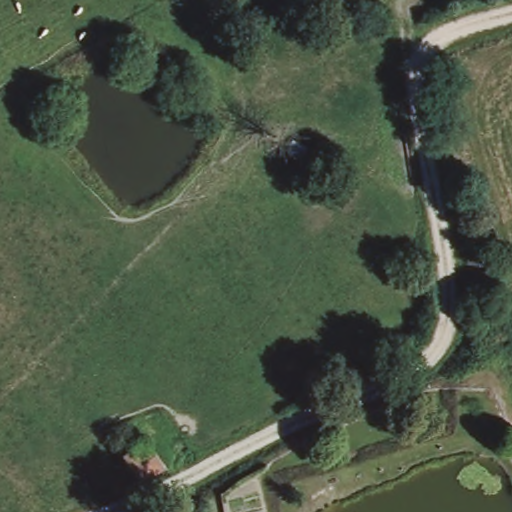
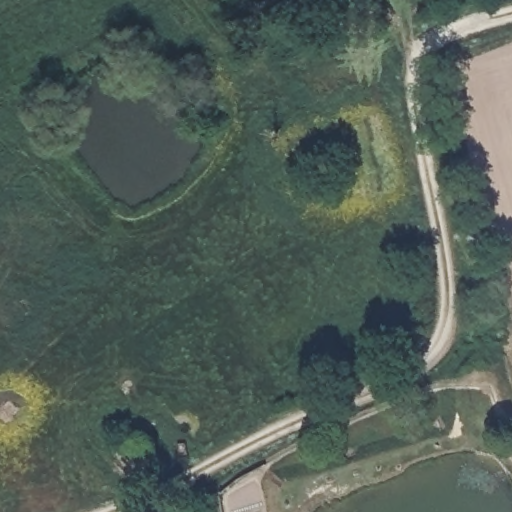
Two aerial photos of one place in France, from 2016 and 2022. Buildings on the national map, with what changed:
unchanged [(145,436),(172,470),(148,488),(121,453),(145,436)]

